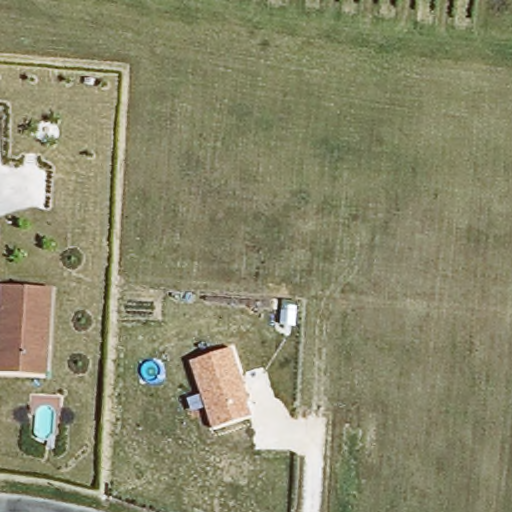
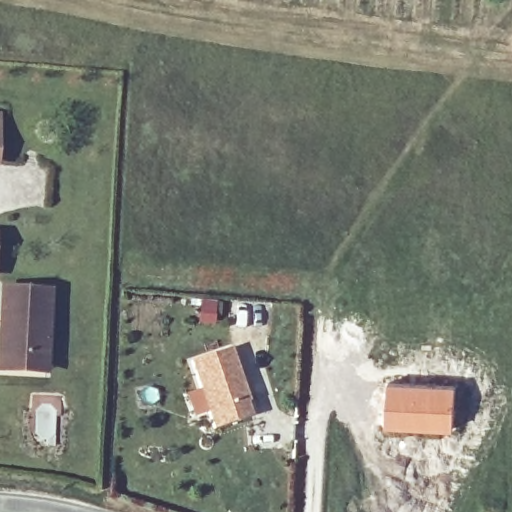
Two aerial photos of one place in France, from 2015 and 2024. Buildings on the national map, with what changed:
new [(2,112),(0,133),(0,112),(2,112)]
unchanged [(0,370),(0,289),(44,291),(41,358),(41,372),(0,370)]
unchanged [(254,414),(212,427),(191,360),(232,347),(254,414)]
new [(387,379),(456,384),(453,428),(385,426),(387,379)]

